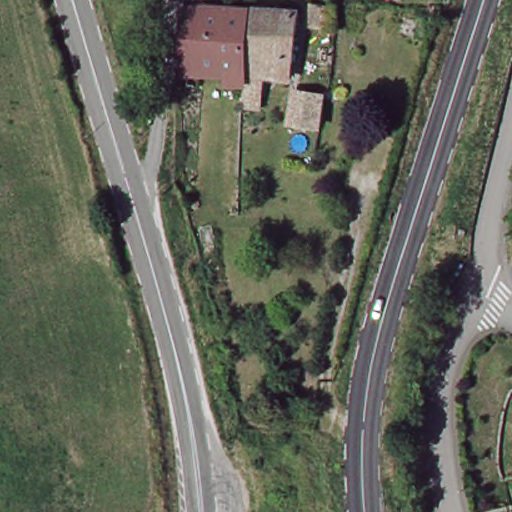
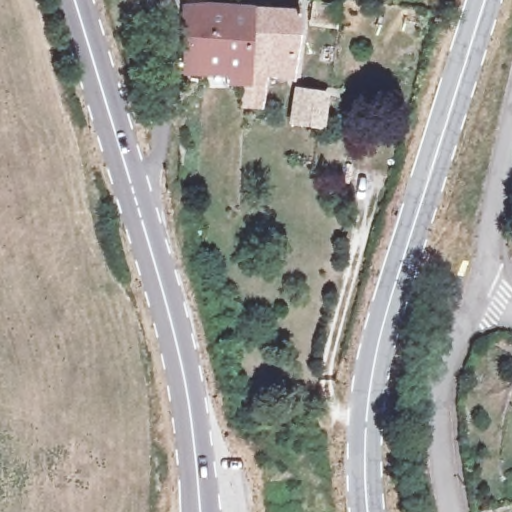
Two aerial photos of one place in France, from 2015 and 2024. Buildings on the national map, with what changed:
unchanged [(255,10),(255,11),(254,28),(252,51),(250,82),(249,82),(238,82),(238,72),(196,73),(194,53),(191,53),(190,10),(212,10),(212,6),(255,10)]
unchanged [(282,12),(282,8),(307,10),(300,55),(252,51),(254,28),(255,11),(255,10),(282,12)]
unchanged [(298,76),(270,74),(265,107),(246,104),(245,104),(249,82),(250,82),(252,51),(300,55),(298,76)]
unchanged [(322,126),(294,122),(297,92),(327,97),(322,126)]

